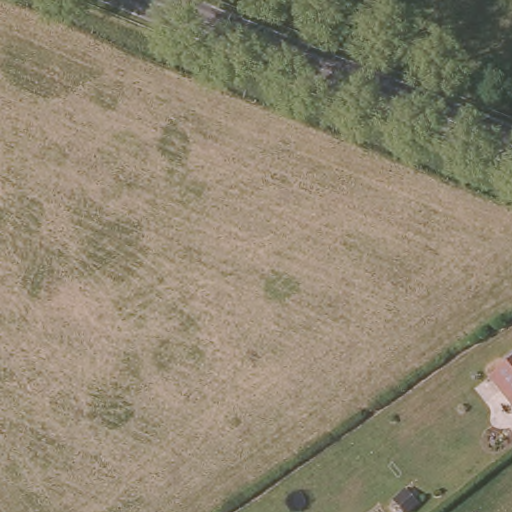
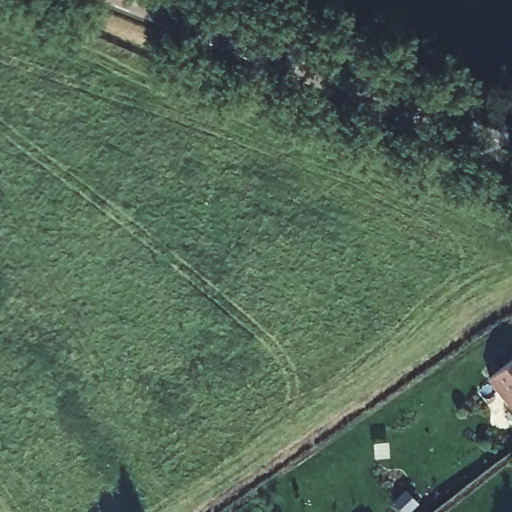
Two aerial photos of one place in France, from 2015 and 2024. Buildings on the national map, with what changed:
unchanged [(512,362),(512,404),(492,378),(512,362)]

